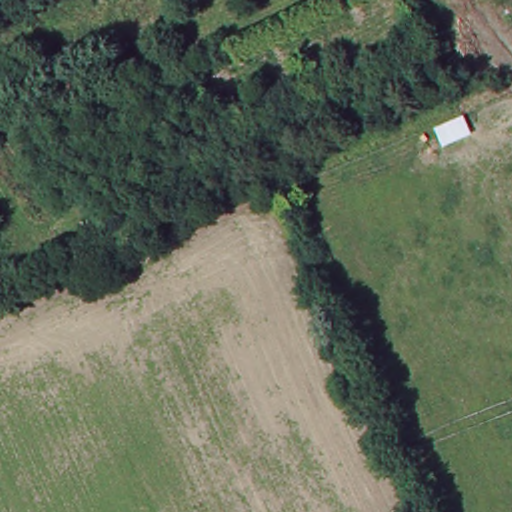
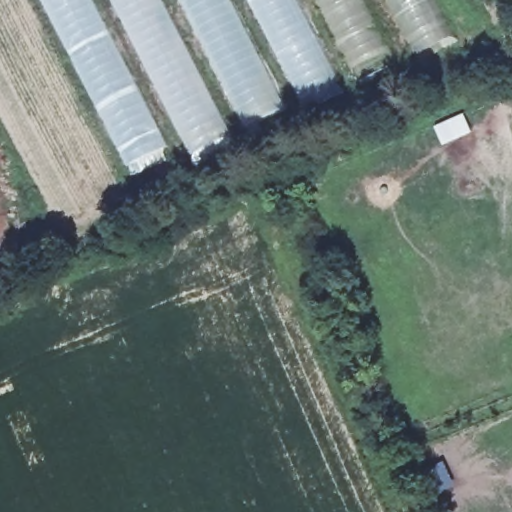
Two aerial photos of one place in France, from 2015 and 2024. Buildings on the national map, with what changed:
new [(160,130),(167,149),(138,164),(142,170),(129,176),(39,0),(92,0),(108,31),(160,130)]
new [(193,160),(176,131),(109,0),(161,0),(232,137),(193,160)]
new [(245,130),(180,0),(229,0),(286,109),(245,130)]
new [(304,110),(246,0),(297,0),(343,92),(304,110)]
new [(352,71),(337,47),(313,0),(364,0),(390,50),(352,71)]
new [(413,59),(391,19),(382,0),(436,0),(457,39),(413,59)]
new [(463,113),(472,132),(442,146),(433,126),(463,113)]

